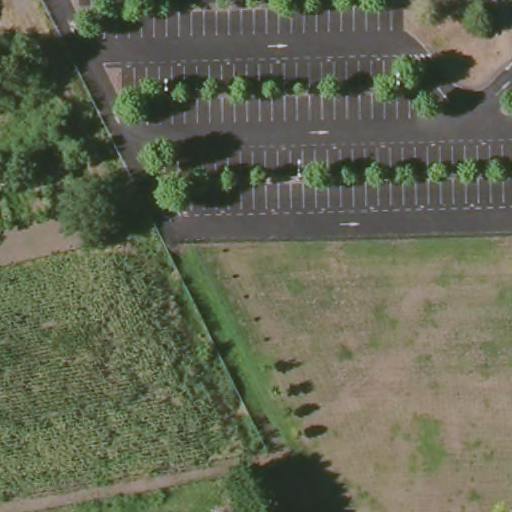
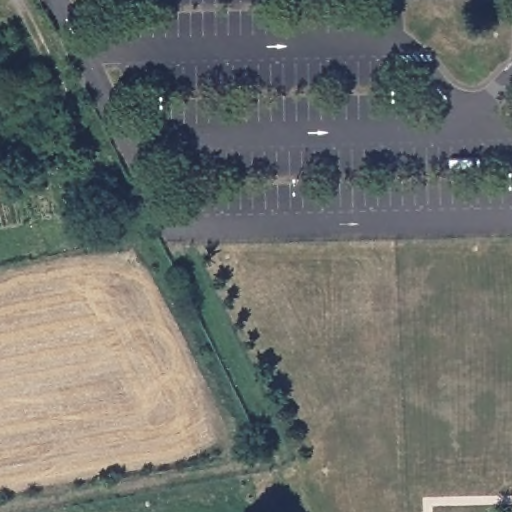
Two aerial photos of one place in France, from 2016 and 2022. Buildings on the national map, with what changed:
[]

